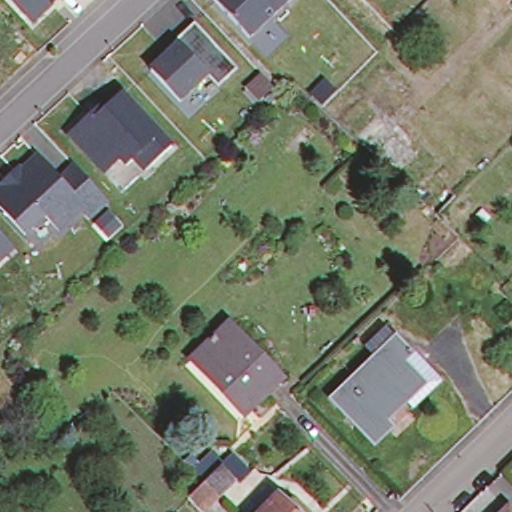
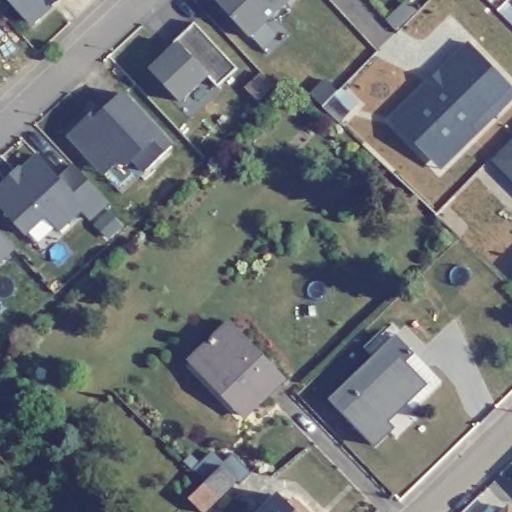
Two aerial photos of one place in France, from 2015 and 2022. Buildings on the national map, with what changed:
unchanged [(50,3),(54,7),(34,26),(9,0),(53,0),(50,3)]
unchanged [(250,41),(213,0),(293,0),(250,41)]
new [(507,1),(512,6),(512,25),(498,10),(507,1)]
new [(408,4),(417,13),(397,32),(387,23),(408,4)]
unchanged [(238,66),(219,84),(208,73),(181,99),(152,68),(170,51),(166,47),(176,39),(195,20),(238,66)]
new [(512,102),(442,170),(392,120),(469,42),(512,85),(512,102)]
new [(327,83),(339,94),(324,109),(312,98),(327,83)]
unchanged [(100,166),(69,133),(90,113),(102,103),(105,107),(124,91),(172,144),(145,170),(135,158),(127,164),(120,157),(105,172),(100,166)]
new [(512,140),(512,180),(492,160),(512,140)]
unchanged [(90,217),(81,207),(59,228),(45,214),(25,232),(0,205),(0,190),(5,184),(2,181),(19,165),(22,169),(39,154),(62,178),(77,164),(84,172),(109,199),(90,217)]
unchanged [(15,250),(0,264),(0,234),(15,250)]
unchanged [(209,370),(191,353),(230,316),(282,371),(249,402),(244,407),(209,370)]
unchanged [(392,335),(435,381),(369,443),(326,397),(392,335)]
unchanged [(195,476),(212,458),(222,468),(235,457),(252,475),(240,487),(235,483),(219,499),(206,512),(197,512),(187,502),(205,485),(195,476)]
unchanged [(288,498),(293,492),(311,510),(309,512),(255,512),(279,488),(288,498)]
unchanged [(511,512),(499,512),(505,506),(511,512)]

